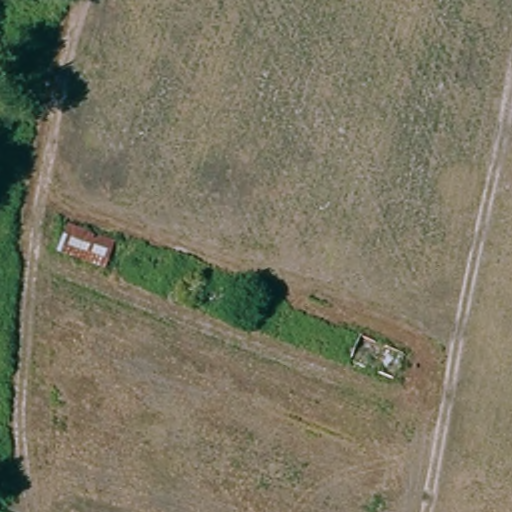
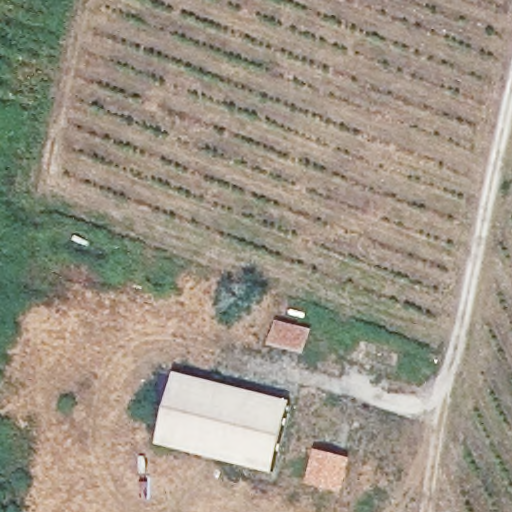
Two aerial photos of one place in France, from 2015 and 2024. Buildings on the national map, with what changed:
unchanged [(362,336),(351,364),(342,359),(352,333),(362,336)]
new [(182,373),(295,406),(275,476),(161,444),(182,373)]
new [(317,448),(353,458),(345,493),(308,483),(317,448)]

